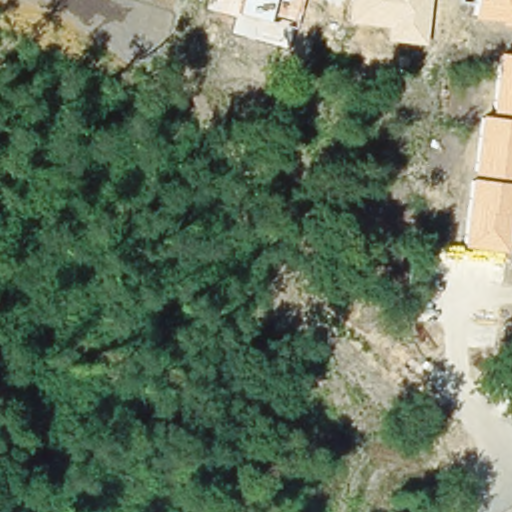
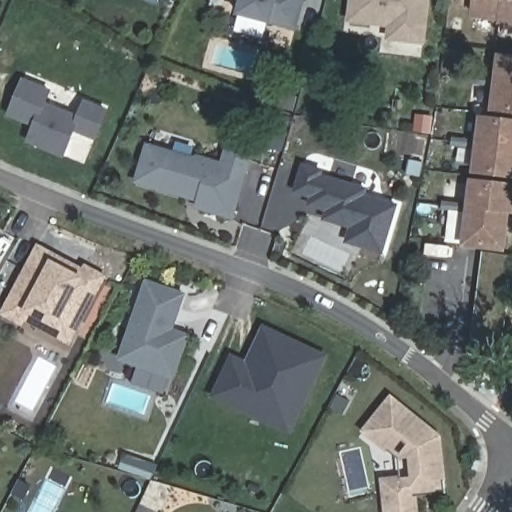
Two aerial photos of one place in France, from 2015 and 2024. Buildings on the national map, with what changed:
unchanged [(296,29),(237,14),(206,5),(207,0),(304,0),(296,29)]
unchanged [(427,45),(386,41),(388,26),(348,22),(351,0),(432,0),(427,45)]
unchanged [(474,0),(512,0),(512,27),(501,26),(501,21),(472,19),(474,0)]
unchanged [(512,53),(512,213),(507,252),(461,246),(471,180),(480,115),(491,116),(498,52),(512,53)]
new [(24,80),(51,91),(46,103),(80,117),(86,101),(107,110),(96,138),(76,130),(65,155),(30,141),(36,124),(10,114),(24,80)]
new [(277,104),(281,92),(297,96),(293,108),(277,104)]
new [(415,130),(417,115),(432,117),(430,132),(415,130)]
new [(147,144),(194,158),(198,156),(247,171),(233,217),(197,206),(202,193),(195,190),(185,195),(137,181),(147,144)]
new [(303,164),(322,170),(321,174),(366,188),(364,194),(397,204),(382,251),(347,240),(352,226),(325,218),(327,209),(310,203),(312,195),(296,190),(303,164)]
new [(22,323),(3,314),(27,267),(37,248),(84,271),(86,267),(104,276),(70,341),(51,332),(24,318),(22,323)]
new [(505,355),(484,353),(496,255),(512,257),(512,288),(505,355)]
new [(120,359),(147,281),(185,294),(172,330),(189,335),(174,378),(120,359)]
new [(244,409),(215,395),(233,357),(248,364),(256,347),(265,328),(326,357),(301,408),(290,431),(244,409)]
new [(416,496),(418,512),(387,512),(383,479),(413,476),(411,457),(398,458),(364,431),(392,397),(440,436),(446,488),(446,493),(432,494),(416,496)]

